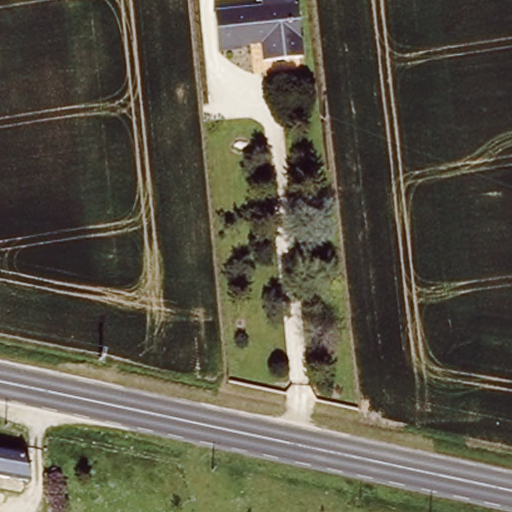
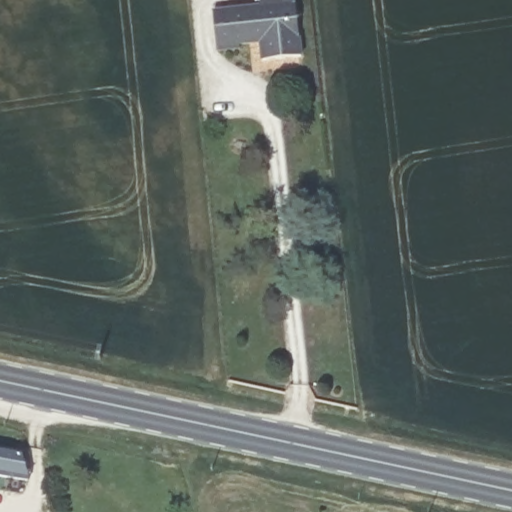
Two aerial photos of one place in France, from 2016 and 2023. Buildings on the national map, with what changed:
unchanged [(219,44),(214,15),(270,9),(271,2),(294,0),(310,0),(312,34),(313,39),(292,41),(291,35),(219,44)]
unchanged [(21,451),(27,478),(0,473),(0,447),(21,451)]

